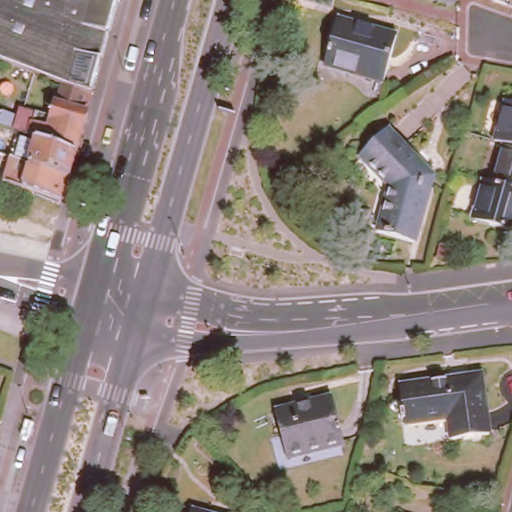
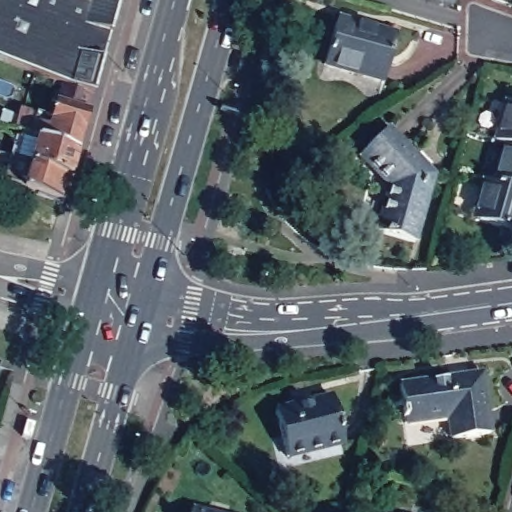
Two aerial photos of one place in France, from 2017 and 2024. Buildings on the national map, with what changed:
unchanged [(62,85),(4,61),(0,60),(0,0),(117,0),(91,96),(62,85)]
unchanged [(453,0),(452,4),(440,0),(453,0)]
unchanged [(322,61),(334,16),(394,31),(382,77),(322,61)]
unchanged [(16,118),(19,110),(49,121),(55,104),(56,105),(62,85),(91,96),(85,116),(74,154),(4,126),(0,125),(0,113),(1,112),(16,118)]
unchanged [(506,98),(512,99),(512,142),(503,140),(494,137),(506,98)]
unchanged [(413,238),(377,227),(388,183),(357,151),(385,125),(432,172),(413,238)]
unchanged [(74,154),(67,181),(6,158),(5,158),(0,156),(0,139),(4,126),(74,154)]
unchanged [(503,140),(512,142),(512,186),(491,180),(503,140)]
unchanged [(6,158),(67,181),(60,204),(0,181),(0,177),(5,158),(6,158)]
unchanged [(483,178),(491,180),(512,186),(512,228),(471,217),(483,178)]
unchanged [(449,377),(480,373),(486,430),(448,435),(446,413),(401,418),(396,380),(449,374),(449,377)]
unchanged [(284,457),(273,410),(330,396),(341,442),(284,457)]
unchanged [(195,506),(219,512),(193,512),(195,506)]

